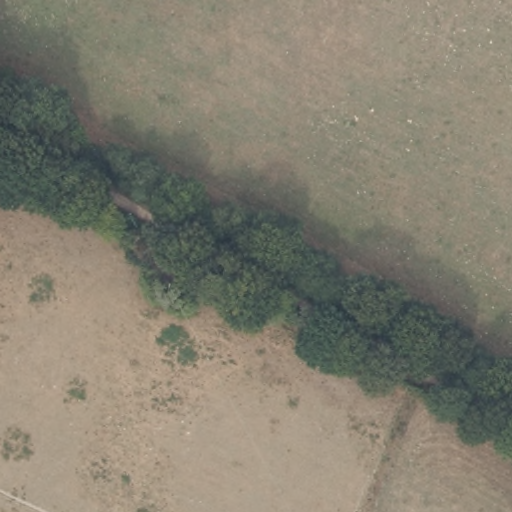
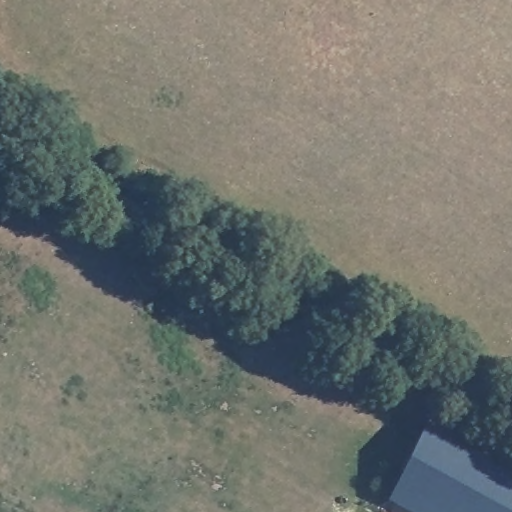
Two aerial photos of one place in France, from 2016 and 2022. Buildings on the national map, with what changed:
new [(425,426),(512,474),(512,512),(414,512),(388,498),(425,426)]

